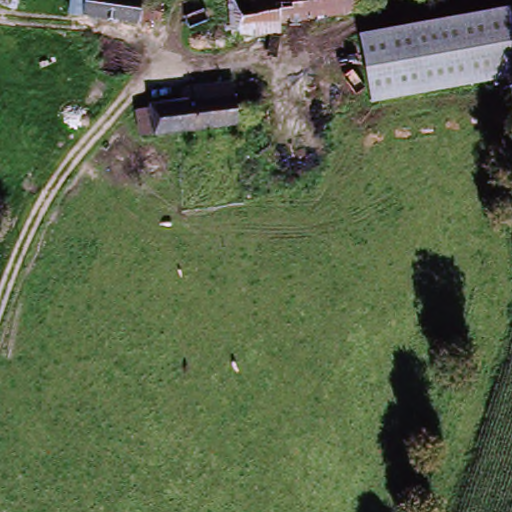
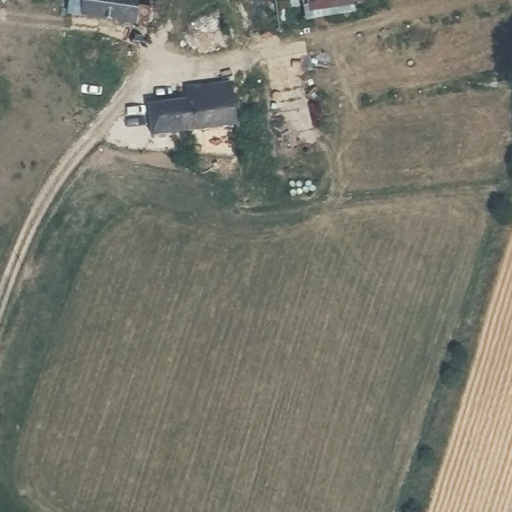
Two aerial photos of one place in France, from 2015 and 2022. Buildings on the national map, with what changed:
unchanged [(3,6),(0,4),(0,0),(6,0),(3,6)]
unchanged [(135,25),(65,15),(68,0),(138,0),(135,25)]
unchanged [(290,33),(235,39),(229,0),(286,0),(290,26),(290,33)]
unchanged [(286,0),(353,0),(355,17),(290,26),(286,0)]
demolished [(509,5),(512,28),(512,74),(369,104),(357,35),(509,5)]
unchanged [(187,102),(187,89),(232,86),(237,127),(140,135),(137,107),(187,102)]

